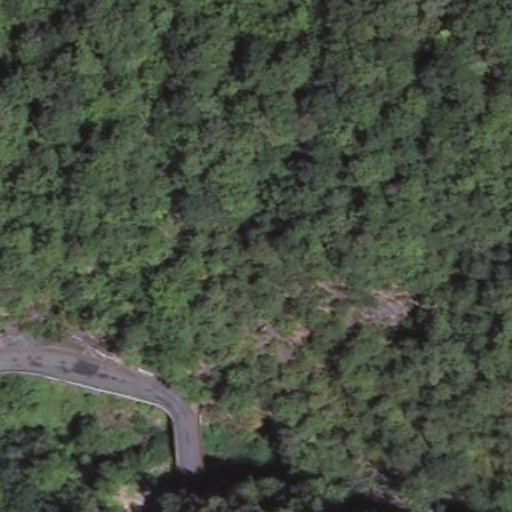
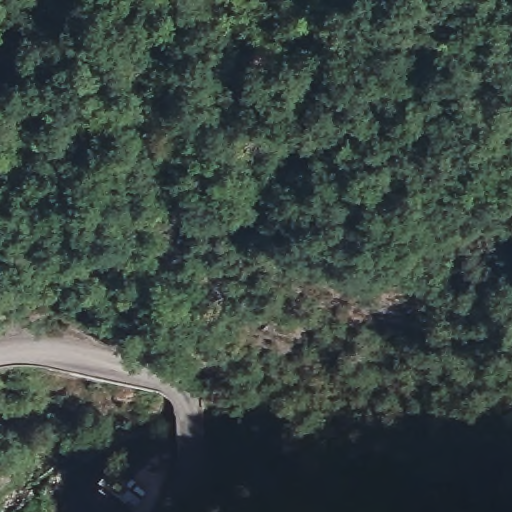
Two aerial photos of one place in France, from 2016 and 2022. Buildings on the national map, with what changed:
[]

